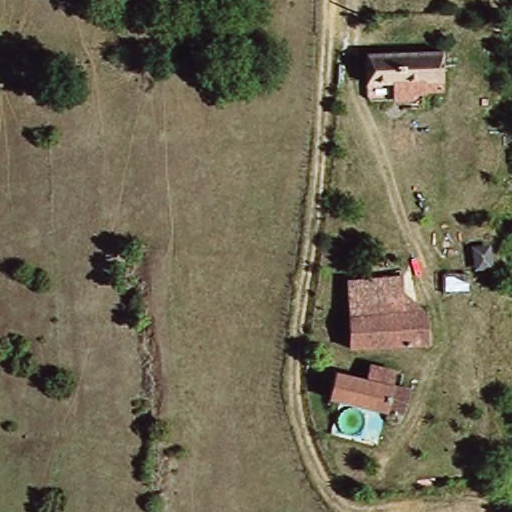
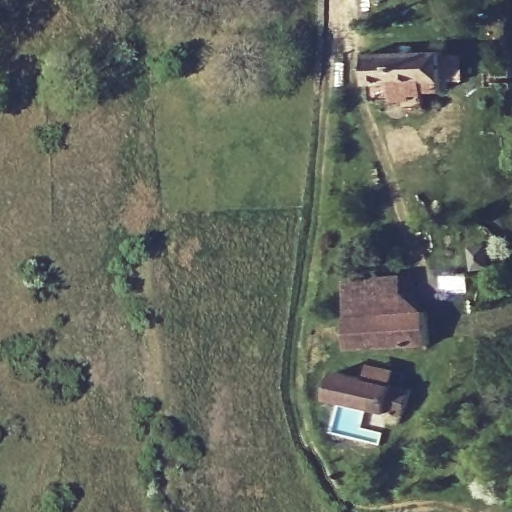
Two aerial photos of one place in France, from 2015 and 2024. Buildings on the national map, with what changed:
unchanged [(397,84),(371,86),(368,57),(440,49),(445,91),(423,94),(412,93),(412,101),(398,102),(397,84)]
unchanged [(496,268),(476,272),(473,248),(492,244),(496,268)]
unchanged [(353,313),(381,312),(380,295),(408,294),(408,311),(430,310),(430,342),(353,344),(353,313)]
unchanged [(375,362),(398,368),(393,384),(410,387),(400,414),(384,412),(327,398),(334,371),(369,379),(375,362)]

